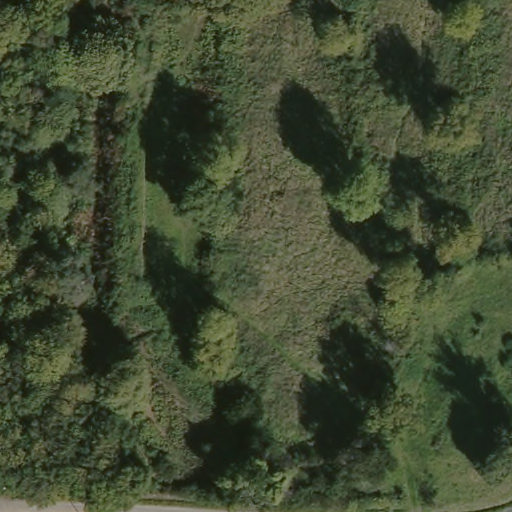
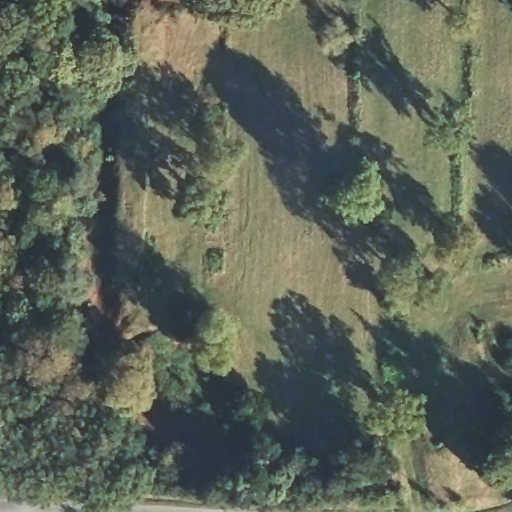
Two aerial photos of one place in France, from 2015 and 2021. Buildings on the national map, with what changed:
[]

